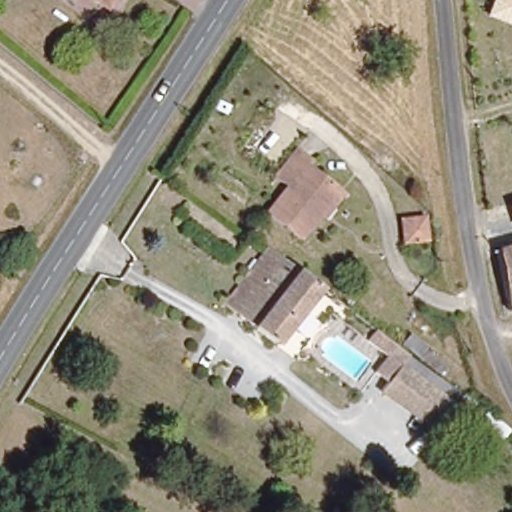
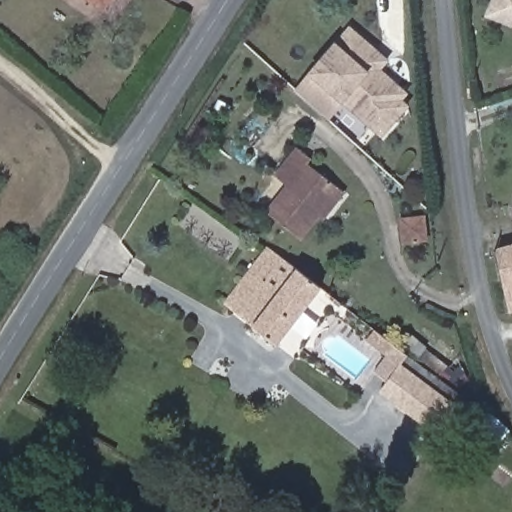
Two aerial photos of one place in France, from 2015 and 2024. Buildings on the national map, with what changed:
unchanged [(94,0),(109,0),(105,7),(94,0)]
unchanged [(484,17),(491,0),(512,0),(512,28),(484,17)]
new [(309,73),(336,42),(349,25),(390,59),(382,69),(409,93),(403,99),(410,106),(383,137),(344,104),(330,121),(294,92),(309,73)]
unchanged [(273,120),(263,134),(253,127),(264,112),(273,120)]
unchanged [(320,217),(316,214),(296,239),(264,215),(285,187),(273,177),(295,148),(307,157),(304,162),(334,186),(340,191),(320,217)]
unchanged [(509,205),(512,204),(512,214),(509,205)]
new [(428,218),(431,241),(406,244),(404,221),(428,218)]
unchanged [(279,345),(225,302),(269,247),(322,287),(279,345)]
unchanged [(512,247),(512,311),(509,312),(497,251),(512,247)]
unchanged [(379,397),(384,390),(372,380),(384,363),(364,348),(372,338),(403,362),(461,406),(453,416),(436,440),(379,397)]

